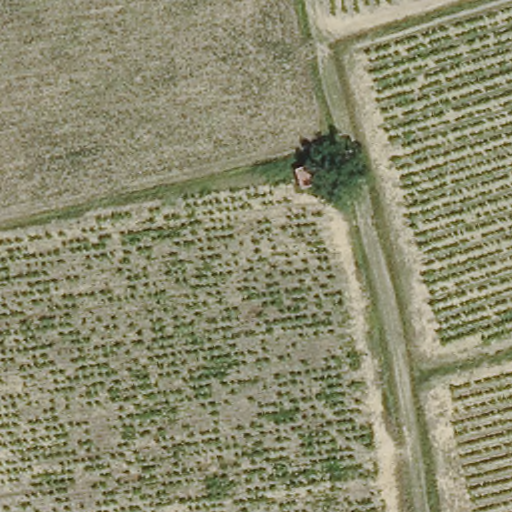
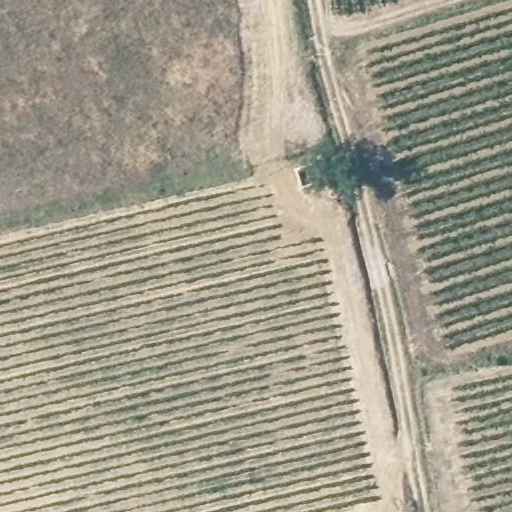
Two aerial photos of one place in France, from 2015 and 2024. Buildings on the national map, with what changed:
unchanged [(331,188),(297,197),(292,171),(326,163),(331,188)]

